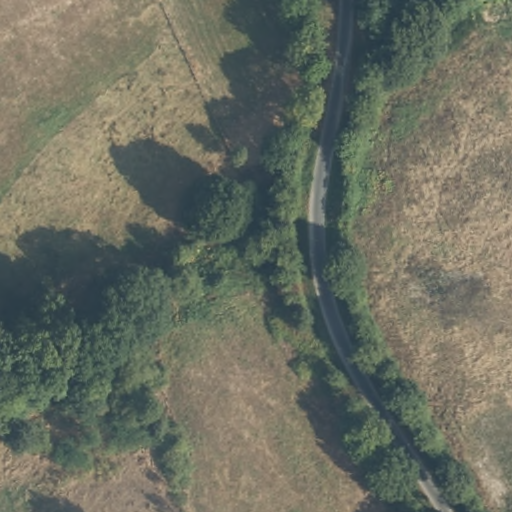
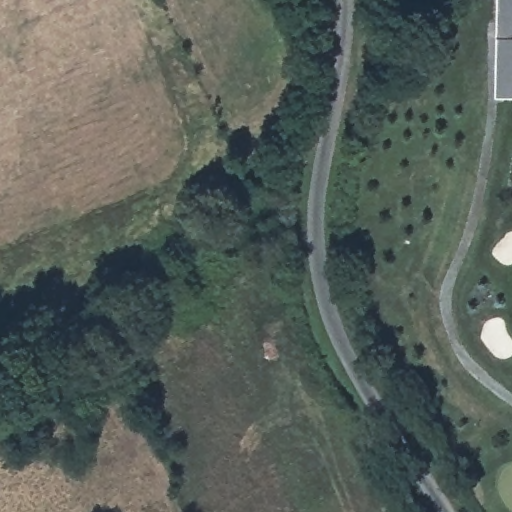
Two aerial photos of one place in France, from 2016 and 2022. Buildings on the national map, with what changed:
new [(512,0),(512,97),(493,96),(495,0),(512,0)]

